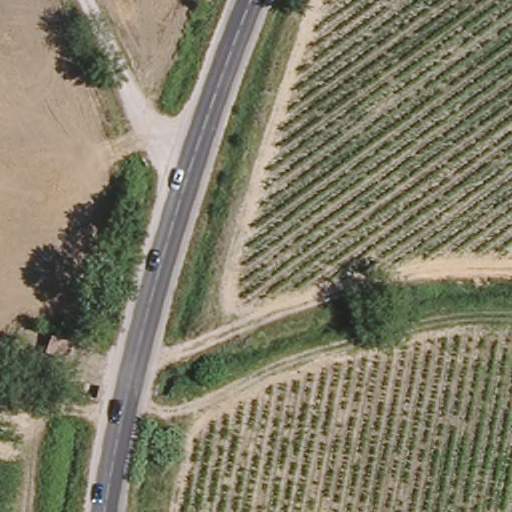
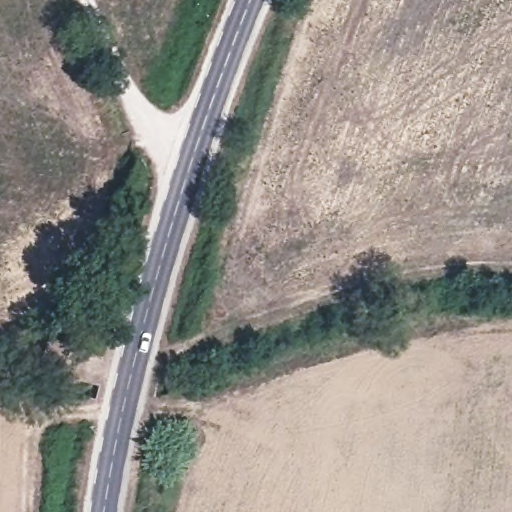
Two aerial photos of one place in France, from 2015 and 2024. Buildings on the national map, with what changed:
unchanged [(73,344),(67,360),(46,352),(52,336),(73,344)]

